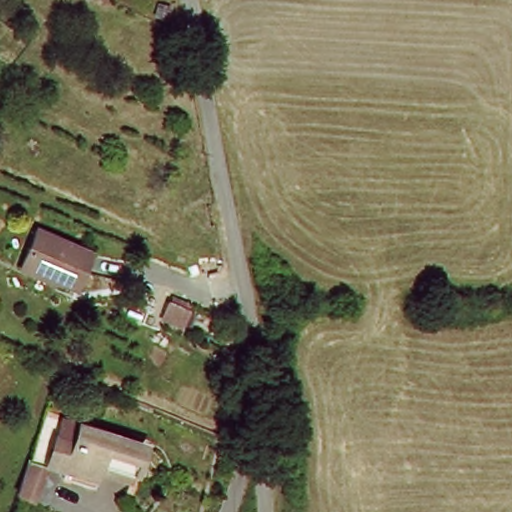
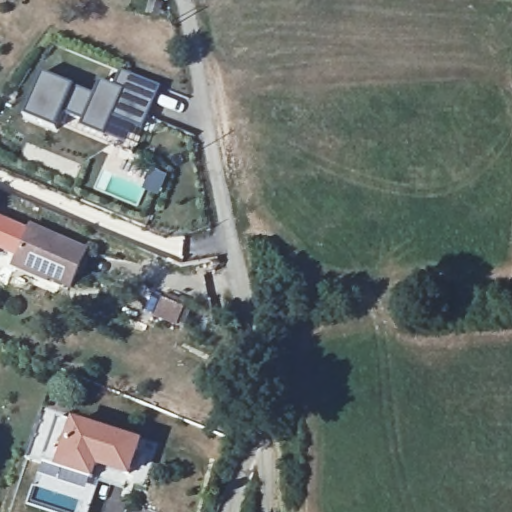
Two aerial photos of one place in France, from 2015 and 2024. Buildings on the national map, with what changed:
unchanged [(161,20),(152,19),(153,6),(163,9),(161,20)]
new [(78,89),(95,97),(103,80),(118,87),(123,71),(162,89),(144,130),(114,118),(106,137),(84,127),(86,122),(65,114),(59,130),(27,117),(45,75),(78,89)]
unchanged [(70,286),(14,263),(33,225),(88,249),(70,286)]
unchanged [(154,281),(191,298),(179,330),(142,313),(154,281)]
unchanged [(13,492),(24,460),(39,413),(144,443),(131,490),(47,466),(35,500),(13,492)]

